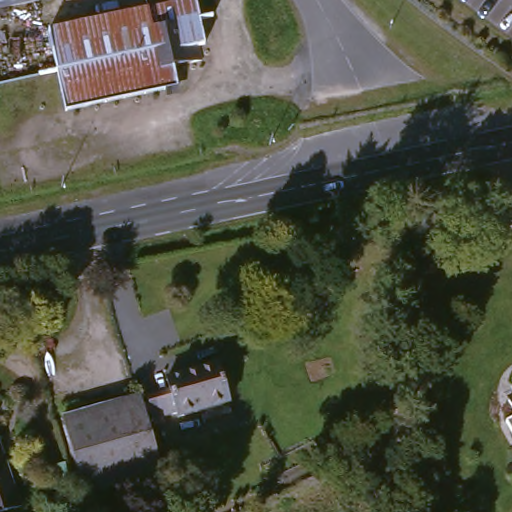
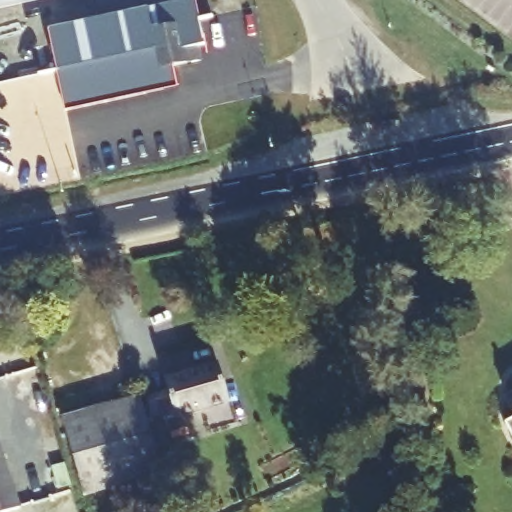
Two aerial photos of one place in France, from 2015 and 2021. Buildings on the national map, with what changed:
unchanged [(0,0),(41,0),(0,9),(0,0)]
unchanged [(206,51),(199,53),(202,69),(174,75),(177,96),(65,120),(47,40),(195,5),(206,51)]
unchanged [(147,408),(145,402),(172,395),(169,381),(224,366),(237,411),(182,426),(181,421),(152,428),(149,417),(140,419),(138,411),(147,408)]
unchanged [(137,405),(138,411),(140,419),(157,483),(76,504),(57,424),(137,405)]
unchanged [(510,412),(512,411),(512,417),(510,412)]
unchanged [(0,512),(0,448),(17,512),(0,512)]

